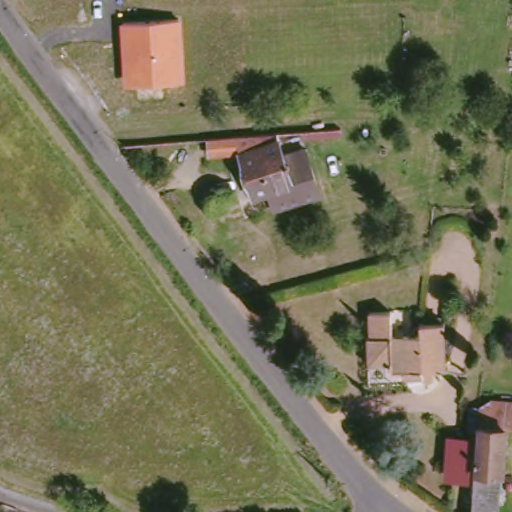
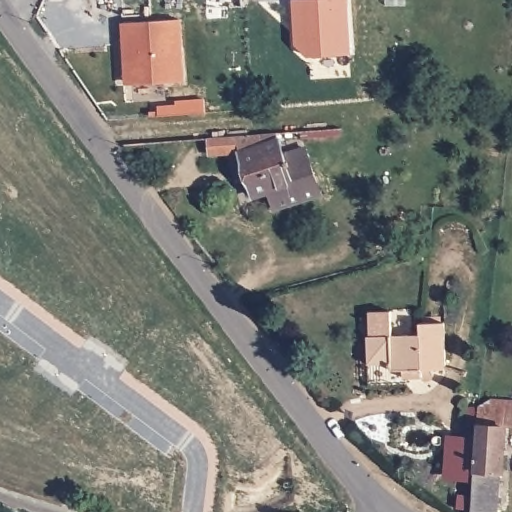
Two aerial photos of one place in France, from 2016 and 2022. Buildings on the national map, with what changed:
new [(245,8),(232,8),(232,0),(244,0),(245,8)]
new [(316,0),(348,0),(352,56),(312,58),(302,51),(300,23),(297,23),(295,1),(316,0)]
unchanged [(181,18),(185,81),(123,85),(120,23),(181,18)]
unchanged [(288,166),(309,160),(323,204),(278,217),(272,199),(258,203),(244,164),(212,165),(210,149),(281,144),(288,166)]
unchanged [(372,337),(372,318),(372,313),(394,312),(394,316),(395,336),(420,336),(420,326),(446,325),(448,372),(437,373),(435,379),(432,382),(427,382),(424,380),(422,374),(393,375),(392,367),(370,368),(370,337),(372,337)]
unchanged [(487,399),(512,401),(512,425),(501,424),(496,512),(468,512),(477,404),(487,405),(487,399)]

